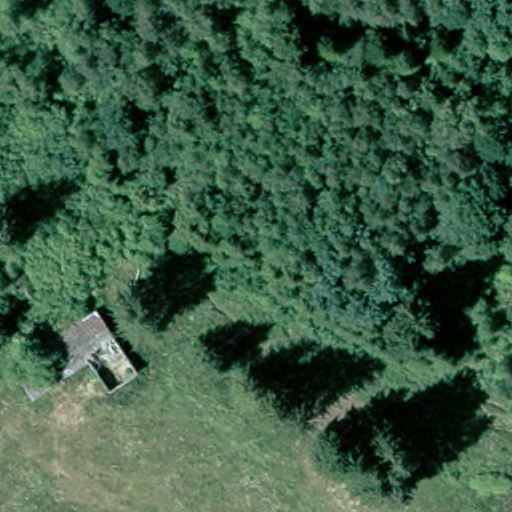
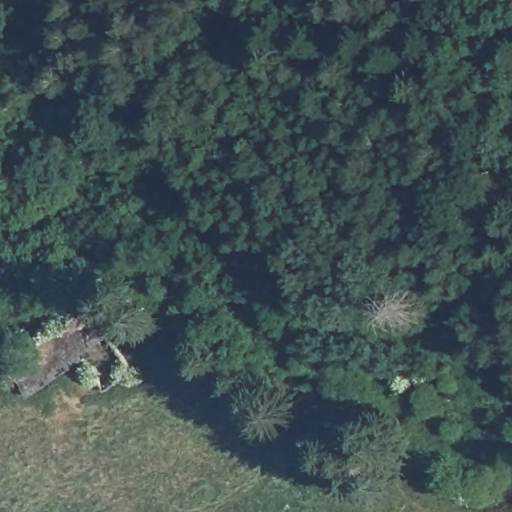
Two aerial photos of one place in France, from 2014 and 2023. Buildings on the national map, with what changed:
unchanged [(113,347),(101,363),(87,352),(58,389),(41,376),(81,323),(98,336),(113,347)]

